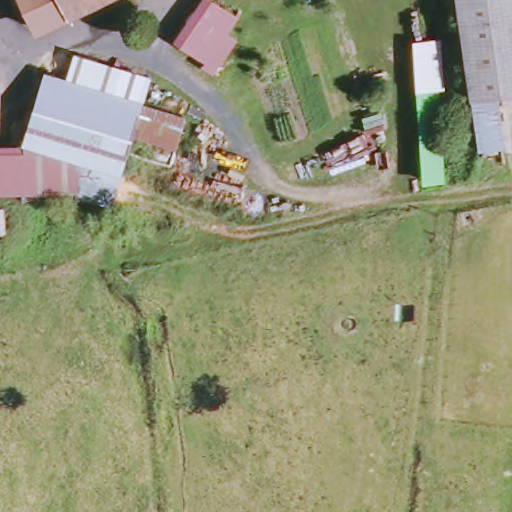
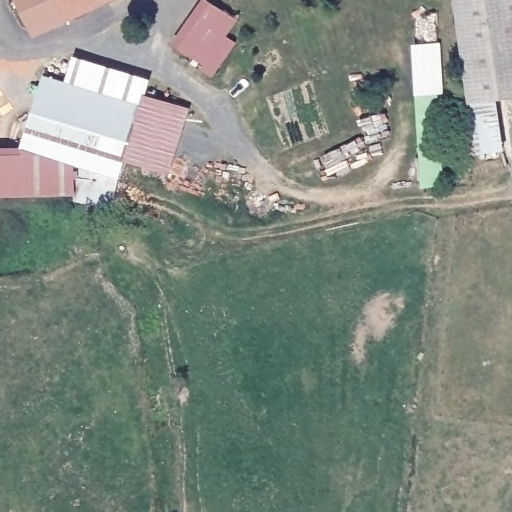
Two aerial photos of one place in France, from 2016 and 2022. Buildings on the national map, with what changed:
unchanged [(15,0),(102,0),(103,1),(34,36),(15,0)]
unchanged [(102,0),(105,0),(103,1),(102,0)]
unchanged [(496,91),(502,150),(479,151),(461,0),(512,0),(512,89),(496,91)]
unchanged [(217,52),(211,47),(198,63),(176,40),(211,2),(211,1),(234,20),(223,35),(226,40),(218,50),(217,52)]
unchanged [(440,45),(444,99),(437,100),(444,187),(421,188),(412,46),(440,45)]
unchanged [(156,78),(147,106),(124,99),(93,89),(66,79),(73,54),(156,78)]
unchanged [(163,182),(159,194),(140,188),(70,165),(19,148),(39,87),(44,72),(66,79),(93,89),(124,99),(147,106),(183,119),(181,125),(163,182)]
unchanged [(19,148),(70,165),(69,196),(0,196),(0,156),(19,156),(19,148)]

